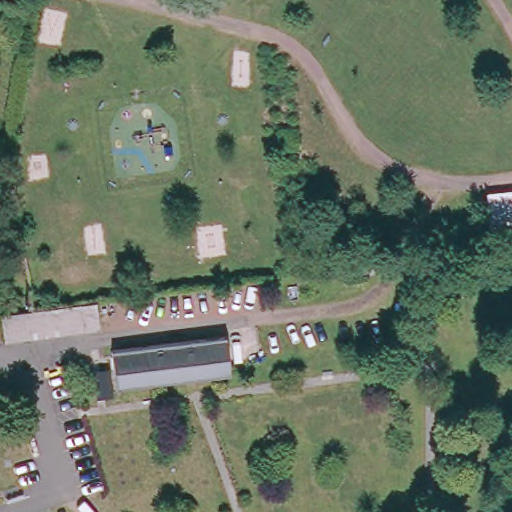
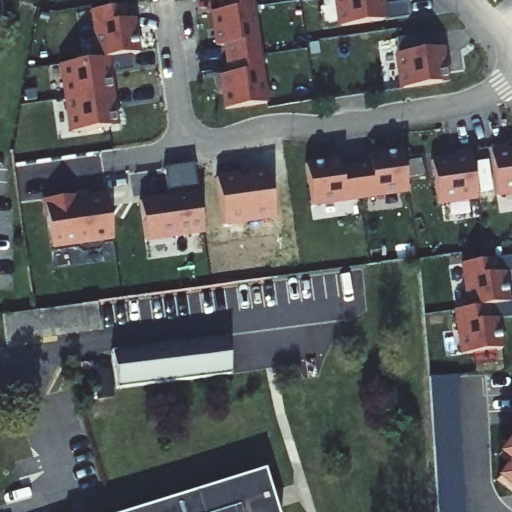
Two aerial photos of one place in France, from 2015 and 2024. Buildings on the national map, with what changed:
new [(217,11),(216,0),(248,0),(249,7),(217,11)]
new [(337,0),(380,0),(383,20),(341,26),(337,0)]
new [(249,7),(256,55),(224,60),(222,45),(214,46),(209,12),(249,7)]
new [(124,10),(129,57),(77,66),(72,14),(124,10)]
new [(398,54),(440,47),(445,82),(402,88),(398,54)]
new [(264,102),(223,108),(218,75),(226,74),(224,60),(256,55),(264,102)]
new [(137,78),(143,135),(88,143),(81,86),(137,78)]
new [(504,151),(512,151),(512,193),(494,194),(488,147),(503,146),(504,151)]
new [(476,198),(434,203),(428,160),(453,158),(453,152),(468,150),(476,198)]
new [(357,198),(353,166),(367,164),(366,156),(400,151),(406,191),(357,198)]
new [(304,165),(337,160),(339,168),(353,166),(357,198),(309,205),(304,165)]
new [(201,232),(143,240),(138,202),(166,198),(162,167),(191,163),(201,232)]
new [(239,173),(239,176),(248,175),(248,172),(269,169),(276,218),(223,226),(216,176),(239,173)]
new [(99,241),(95,246),(82,248),(77,244),(49,248),(43,199),(73,195),(74,199),(105,195),(111,240),(99,241)]
new [(494,259),(496,273),(504,272),(508,302),(468,308),(462,263),(494,259)]
unchanged [(25,311),(33,310),(97,301),(100,329),(5,341),(3,314),(25,311)]
new [(487,305),(489,320),(497,319),(501,348),(461,353),(456,310),(468,308),(487,305)]
unchanged [(226,333),(230,361),(231,370),(118,385),(113,349),(226,333)]
new [(456,375),(465,512),(438,512),(432,377),(456,375)]
new [(509,463),(498,454),(512,437),(512,491),(497,479),(509,463)]
new [(264,468),(277,512),(125,512),(264,468)]

